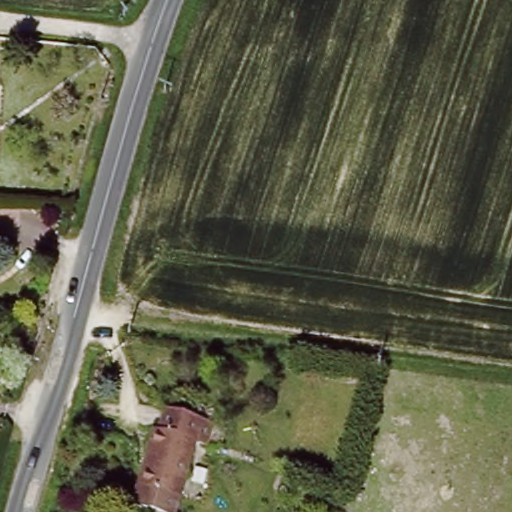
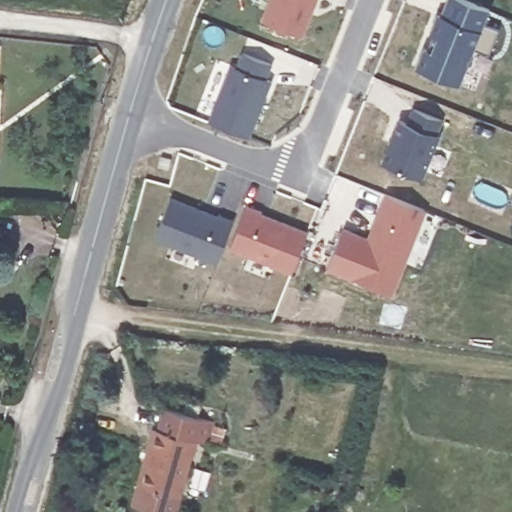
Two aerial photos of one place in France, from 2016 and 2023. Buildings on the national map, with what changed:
new [(303,35),(260,19),(268,0),(316,0),(303,35)]
new [(489,56),(474,49),(460,85),(415,69),(423,46),(432,51),(438,36),(427,33),(436,12),(440,14),(445,0),(464,0),(490,10),(484,24),(498,30),(489,56)]
new [(263,80),(272,82),(250,138),(207,121),(230,64),(237,66),(243,53),(273,65),(263,80)]
new [(441,178),(425,172),(422,179),(382,161),(399,120),(408,124),(415,109),(442,120),(437,135),(440,136),(437,145),(450,151),(441,178)]
new [(392,294),(326,269),(345,226),(368,236),(386,193),(426,210),(392,294)]
new [(217,262),(154,239),(171,197),(217,216),(219,214),(233,220),(217,262)]
new [(291,273),(228,250),(245,205),(262,211),(261,214),(309,233),(291,273)]
unchanged [(136,483),(151,424),(155,425),(162,406),(209,419),(204,440),(192,438),(177,493),(136,483)]

